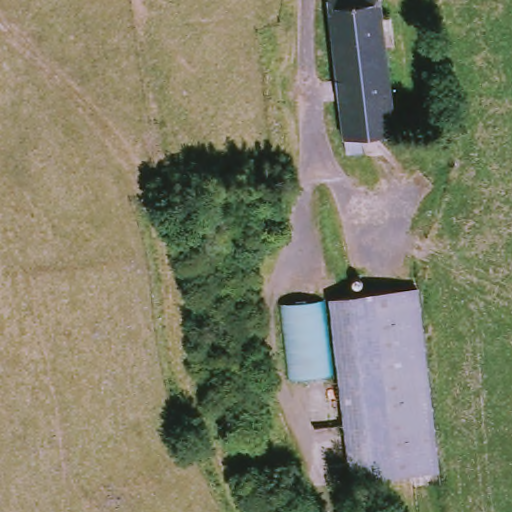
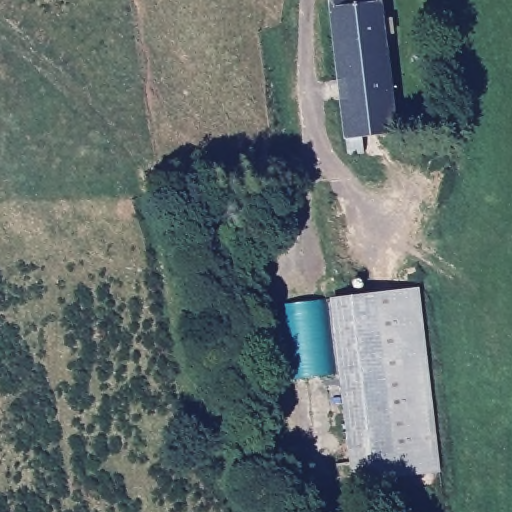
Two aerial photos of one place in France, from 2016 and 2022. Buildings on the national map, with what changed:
unchanged [(378,52),(390,140),(355,144),(357,158),(342,161),(325,0),(374,0),(376,24),(385,23),(387,39),(389,51),(378,52)]
unchanged [(321,300),(333,375),(295,379),(286,306),(321,300)]
unchanged [(426,310),(446,469),(367,480),(345,320),(426,310)]

